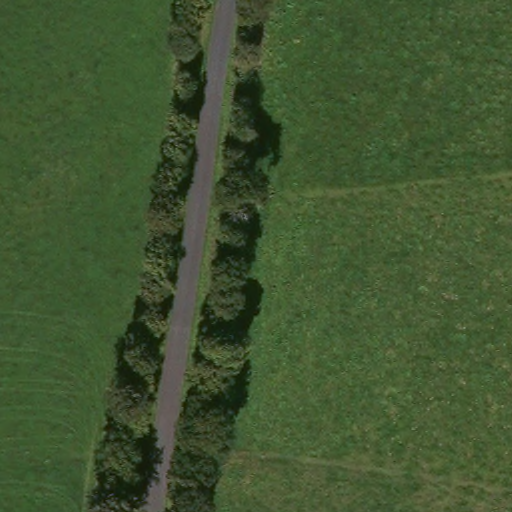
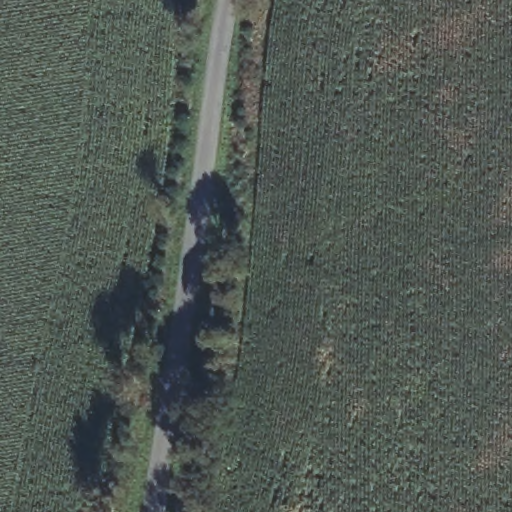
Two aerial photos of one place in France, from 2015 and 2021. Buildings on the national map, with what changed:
[]

